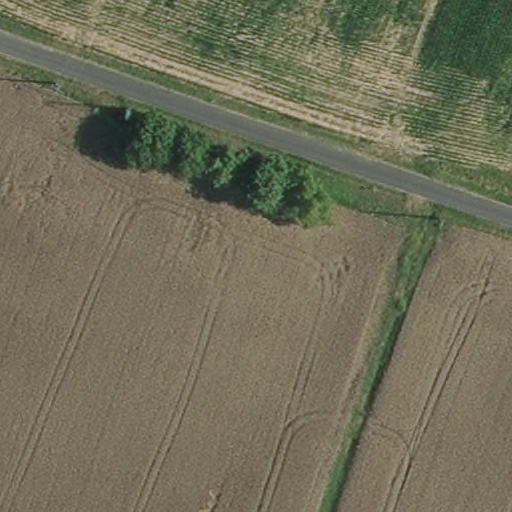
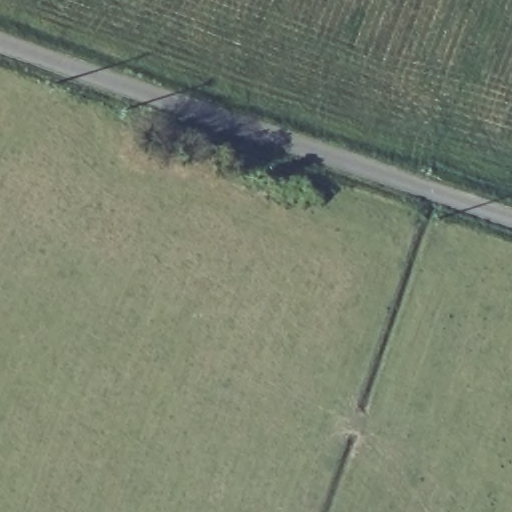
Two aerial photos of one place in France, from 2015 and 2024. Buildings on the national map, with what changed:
[]

